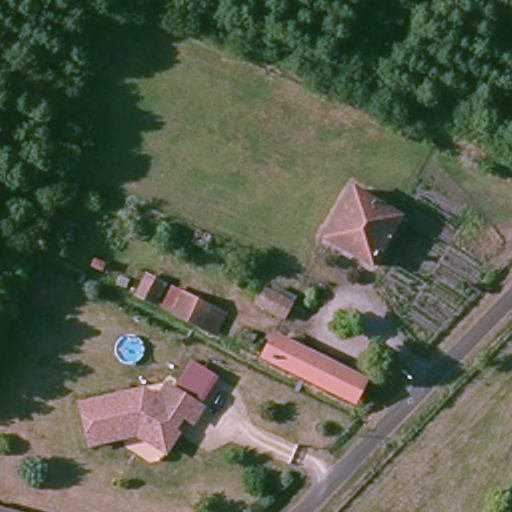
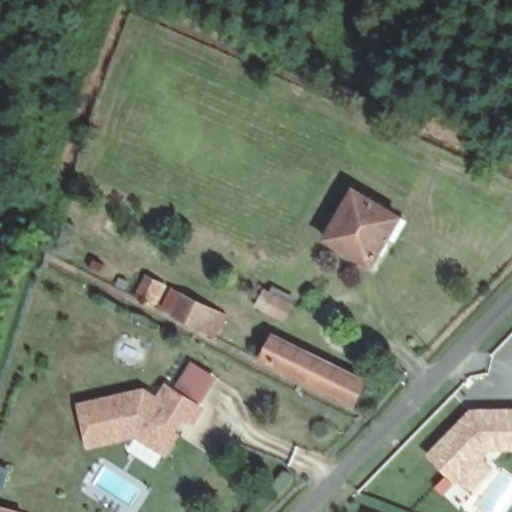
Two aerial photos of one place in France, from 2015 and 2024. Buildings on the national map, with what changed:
unchanged [(352,191),(397,219),(366,267),(323,240),(352,191)]
unchanged [(209,312),(200,328),(141,300),(150,282),(209,312)]
unchanged [(288,302),(290,303),(281,317),(261,306),(270,291),(288,302)]
unchanged [(360,383),(351,402),(259,356),(268,337),(360,383)]
unchanged [(125,400),(127,408),(136,406),(145,412),(160,389),(192,411),(184,423),(177,418),(166,433),(171,437),(159,455),(134,437),(89,451),(78,412),(125,400)]
new [(480,410),(482,415),(488,417),(494,415),(512,421),(512,458),(490,445),(457,477),(430,451),(473,407),(480,410)]
new [(447,477),(453,483),(445,492),(438,486),(447,477)]
unchanged [(11,512),(0,512),(0,510),(11,512)]

